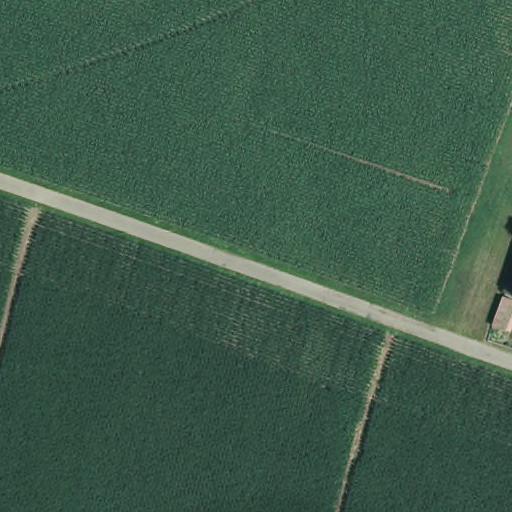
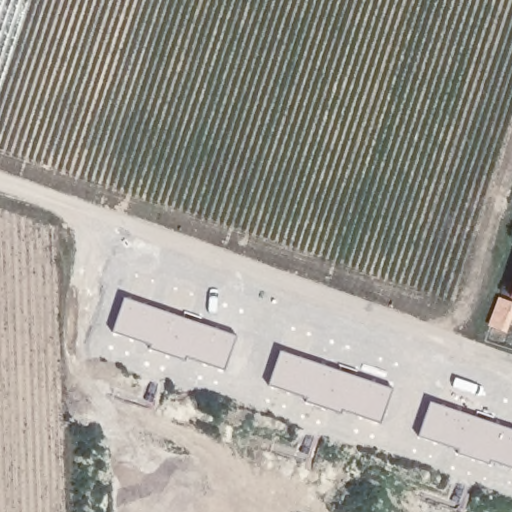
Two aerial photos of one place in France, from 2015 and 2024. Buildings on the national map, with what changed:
new [(124,295),(195,318),(237,335),(224,368),(185,355),(184,359),(111,330),(124,295)]
unchanged [(512,324),(512,325),(499,322),(509,295),(512,297),(512,324)]
new [(280,348),(392,388),(380,422),(342,408),(340,412),(267,383),(280,348)]
new [(512,428),(512,467),(490,458),(488,463),(417,435),(430,399),(512,428)]

